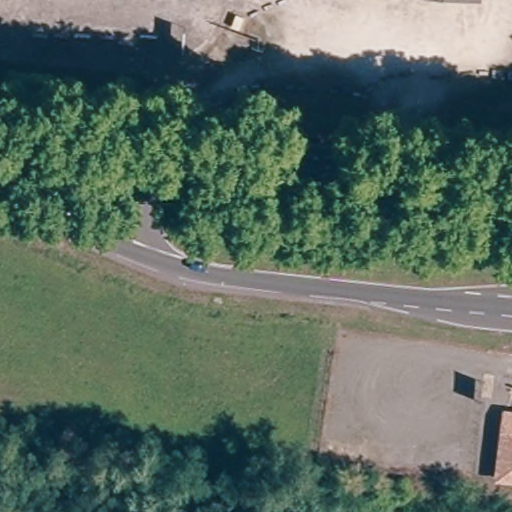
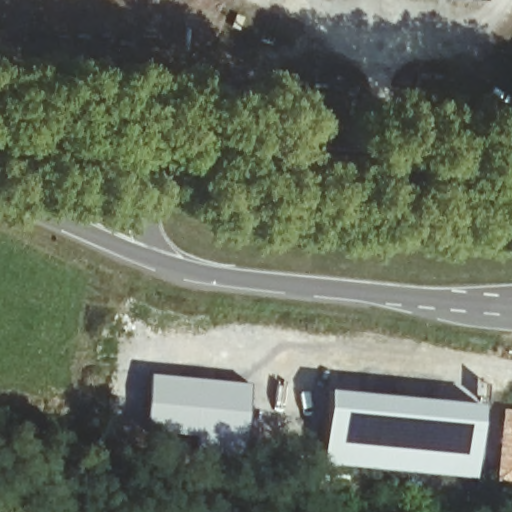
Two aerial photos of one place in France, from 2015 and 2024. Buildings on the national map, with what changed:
unchanged [(447,0),(482,0),(482,3),(447,0)]
new [(149,371),(250,381),(242,448),(220,445),(177,435),(142,430),(149,371)]
new [(327,386),(483,402),(473,477),(317,462),(327,386)]
unchanged [(499,471),(507,406),(512,407),(512,473),(499,471)]

